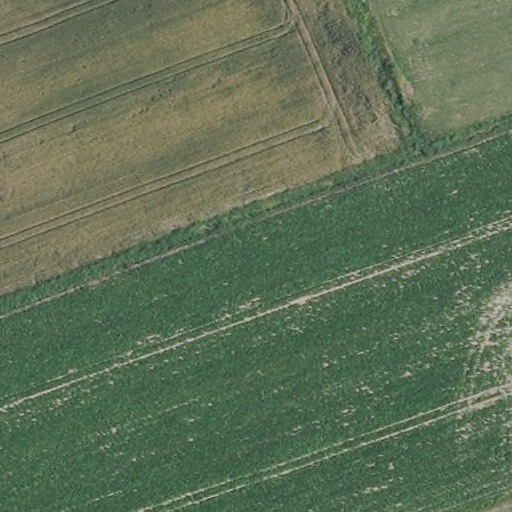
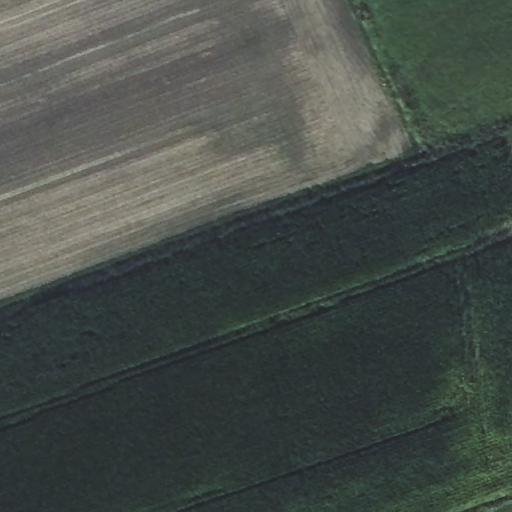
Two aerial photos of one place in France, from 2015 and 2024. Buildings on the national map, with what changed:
[]

